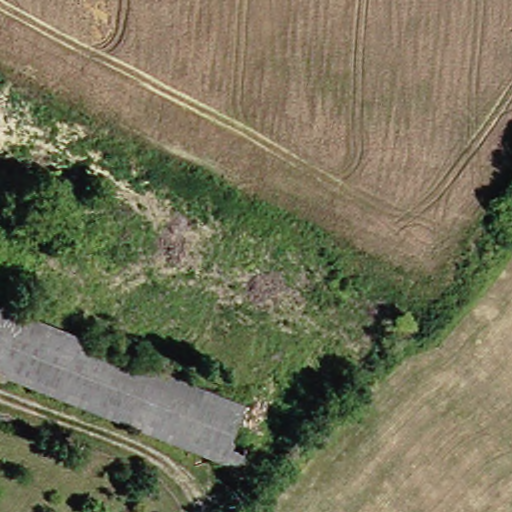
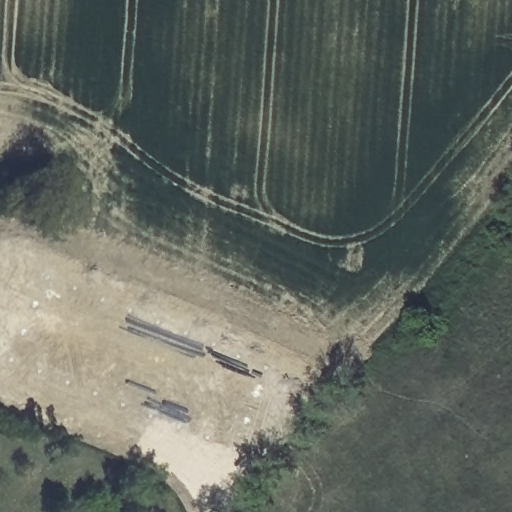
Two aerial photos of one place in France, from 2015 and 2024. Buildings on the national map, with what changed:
demolished [(228,465),(122,423),(9,378),(0,375),(0,314),(249,412),(228,465)]

